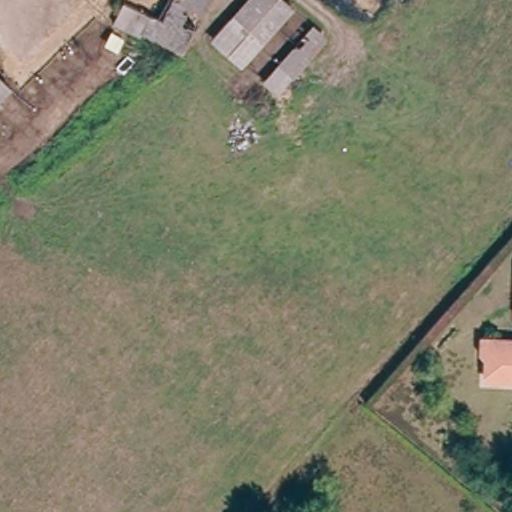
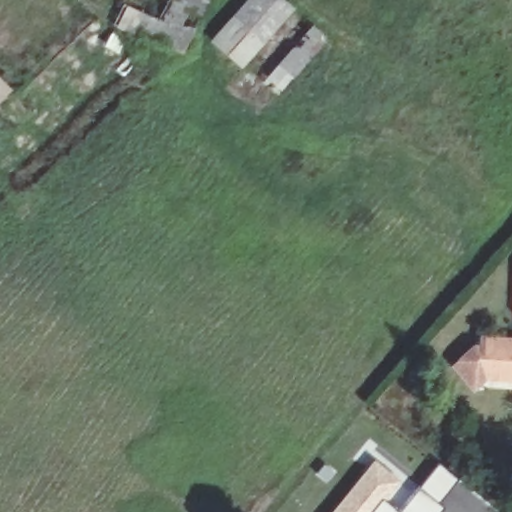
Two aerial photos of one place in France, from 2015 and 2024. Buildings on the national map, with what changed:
unchanged [(119,0),(122,0),(146,12),(138,29),(111,17),(119,0)]
unchanged [(243,0),(262,0),(282,18),(247,57),(216,30),(243,0)]
unchanged [(300,30),(317,45),(284,85),(266,67),(300,30)]
unchanged [(0,93),(0,78),(7,85),(0,93)]
unchanged [(483,371),(484,353),(479,348),(480,330),(512,332),(512,372),(483,371)]
new [(385,500),(399,512),(332,512),(375,459),(400,480),(385,500)]
new [(457,479),(438,502),(443,506),(439,512),(403,512),(438,464),(457,479)]

